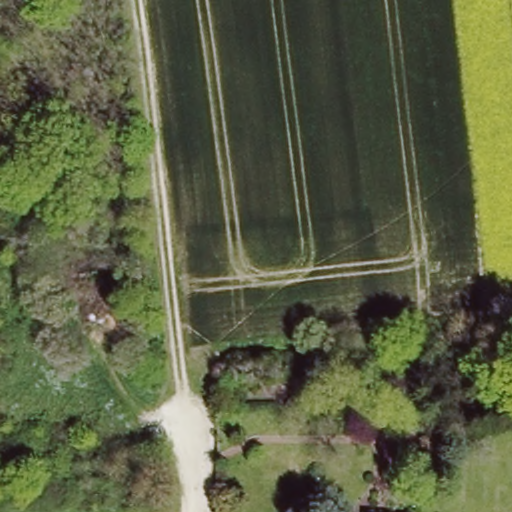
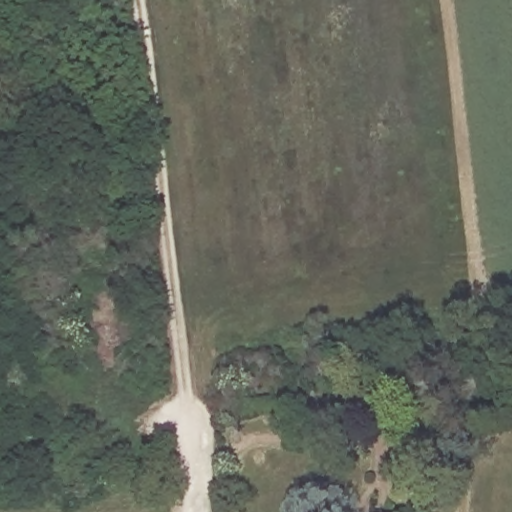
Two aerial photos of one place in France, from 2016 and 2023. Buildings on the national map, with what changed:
unchanged [(417,512),(416,512),(374,512),(374,509),(417,512)]

